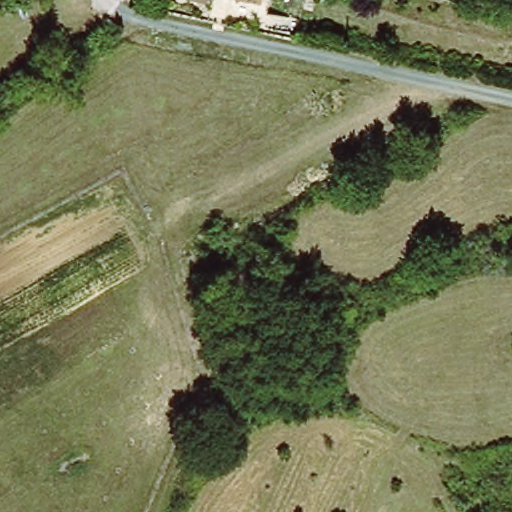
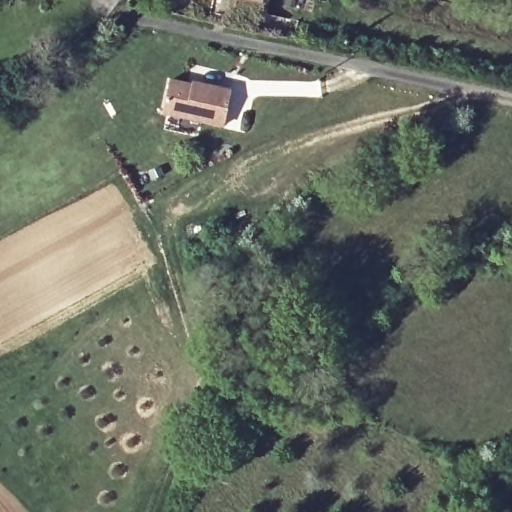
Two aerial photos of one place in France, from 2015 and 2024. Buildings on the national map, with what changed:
unchanged [(219,14),(220,1),(204,0),(278,0),(275,21),(219,14)]
new [(161,114),(170,79),(192,85),(193,80),(233,89),(224,128),(161,114)]

